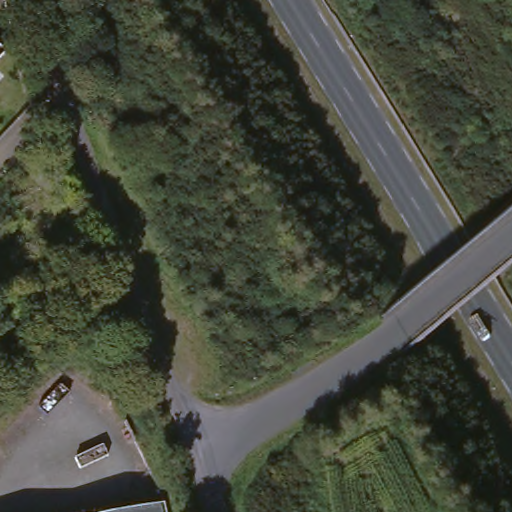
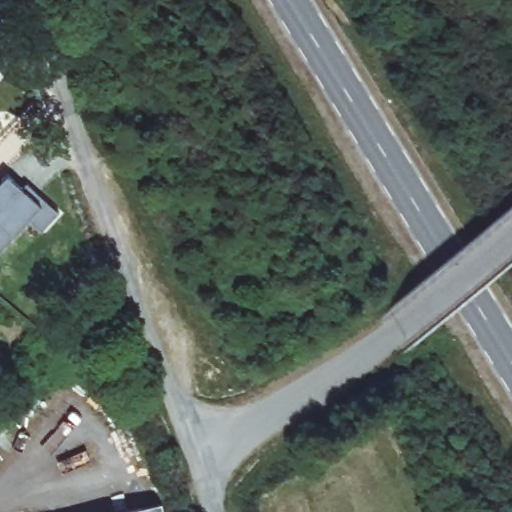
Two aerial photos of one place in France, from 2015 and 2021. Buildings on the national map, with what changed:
unchanged [(0,47),(0,39),(4,43),(0,47)]
unchanged [(0,63),(0,48),(8,55),(0,63)]
new [(24,190),(29,185),(59,213),(44,231),(30,220),(0,252),(0,185),(9,176),(24,190)]
unchanged [(171,512),(126,512),(169,503),(171,512)]

